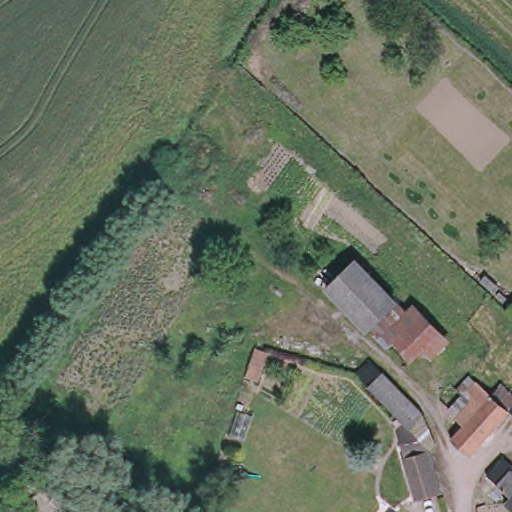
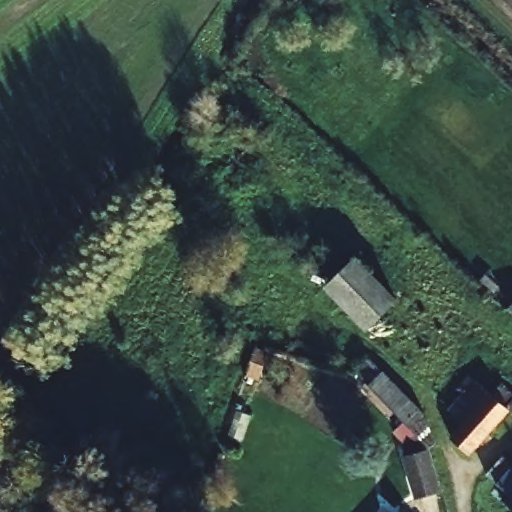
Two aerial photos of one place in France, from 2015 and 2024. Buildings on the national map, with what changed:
unchanged [(420,359),(411,369),(377,335),(370,337),(327,291),(360,258),(404,306),(410,299),(454,344),(432,366),(420,359)]
unchanged [(512,304),(512,310),(510,307),(512,304)]
unchanged [(372,363),(430,416),(445,493),(415,501),(395,425),(398,421),(357,379),(372,363)]
unchanged [(454,451),(466,437),(443,413),(455,399),(460,403),(472,390),(492,405),(501,394),(512,404),(512,417),(470,465),(454,451)]
unchanged [(511,500),(505,493),(489,477),(507,459),(512,464),(512,512),(506,505),(511,500)]

